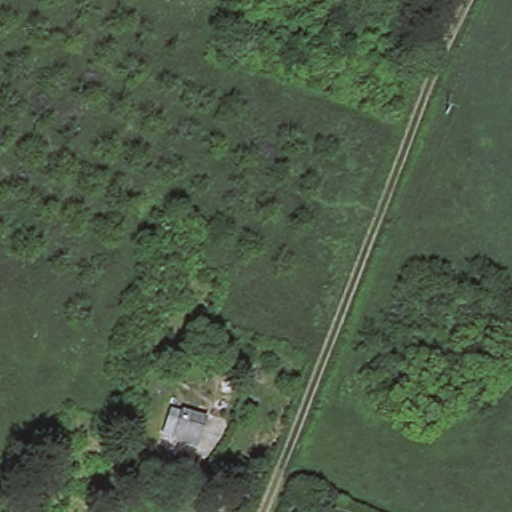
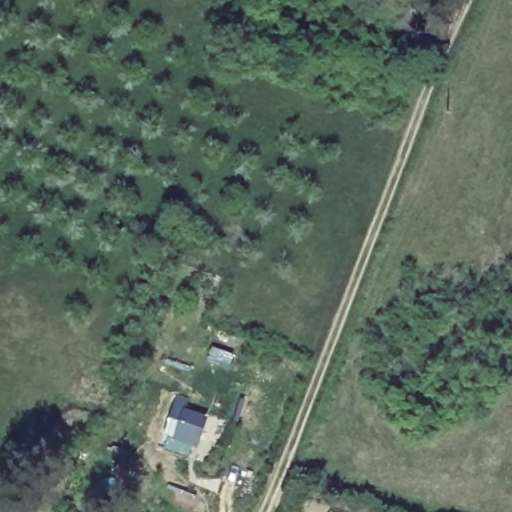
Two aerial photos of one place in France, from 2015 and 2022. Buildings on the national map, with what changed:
unchanged [(203,420),(192,445),(175,437),(175,436),(167,432),(177,410),(186,413),(187,412),(203,420)]
unchanged [(325,512),(310,512),(312,507),(325,512)]

